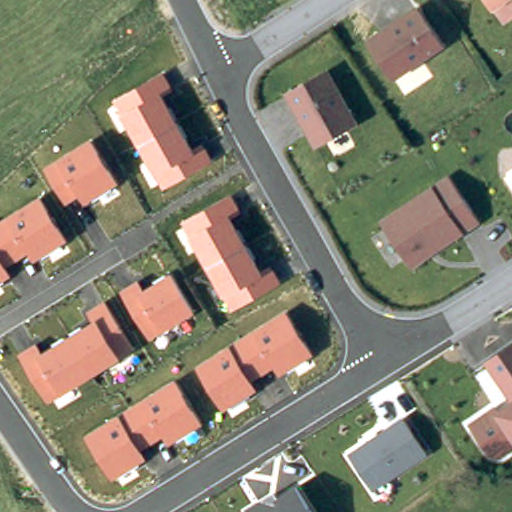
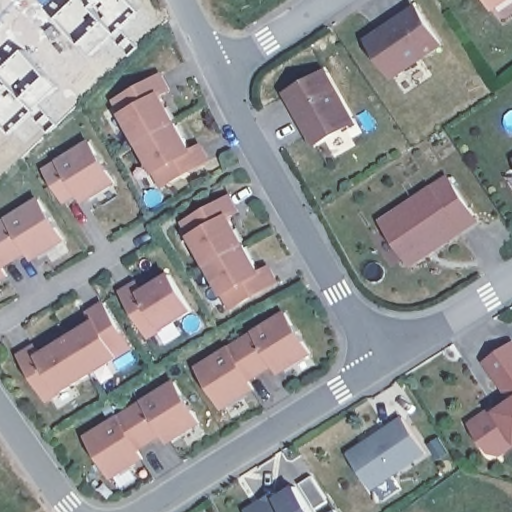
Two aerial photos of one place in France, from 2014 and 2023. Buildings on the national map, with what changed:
unchanged [(488,7),(483,0),(499,0),(488,7)]
unchanged [(390,78),(365,40),(413,8),(438,45),(390,78)]
unchanged [(312,144),(284,94),(323,71),(352,122),(312,144)]
unchanged [(173,89),(162,95),(192,148),(203,143),(213,161),(163,189),(113,101),(164,73),(173,89)]
unchanged [(118,184),(83,205),(78,196),(65,204),(43,168),(90,139),(118,184)]
unchanged [(402,269),(373,225),(439,182),(467,226),(451,236),(420,257),(402,269)]
unchanged [(242,212),(232,218),(262,271),(272,265),(281,282),(231,310),(182,222),(230,193),(242,212)]
unchanged [(34,262),(28,253),(6,267),(11,275),(0,283),(0,221),(40,196),(67,241),(34,262)]
unchanged [(196,312),(150,340),(120,290),(138,279),(145,289),(171,273),(196,312)]
unchanged [(135,349),(48,404),(17,354),(36,342),(42,353),(92,322),(86,311),(105,300),(135,349)]
unchanged [(314,355),(280,375),(275,366),(252,381),(257,389),(224,410),(196,367),(285,310),(314,355)]
unchanged [(489,363),(512,347),(512,396),(489,363)]
unchanged [(203,422),(170,443),(164,435),(141,449),(146,459),(112,480),(85,436),(175,379),(203,422)]
unchanged [(497,408),(500,412),(512,405),(512,448),(502,454),(493,452),(477,428),(474,424),(497,408)]
unchanged [(428,454),(373,490),(350,453),(403,417),(428,454)]
unchanged [(246,512),(244,508),(275,489),(280,496),(296,485),(314,512),(246,512)]

